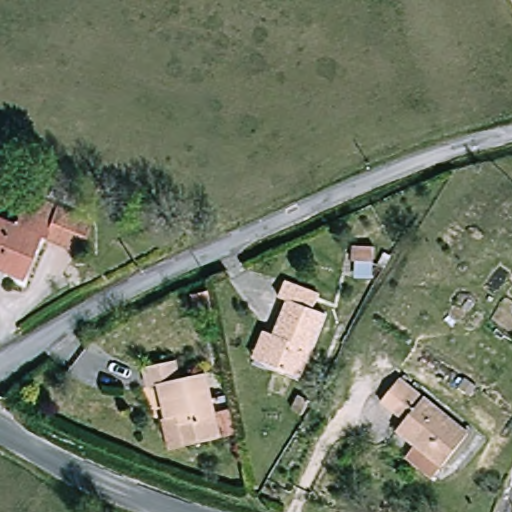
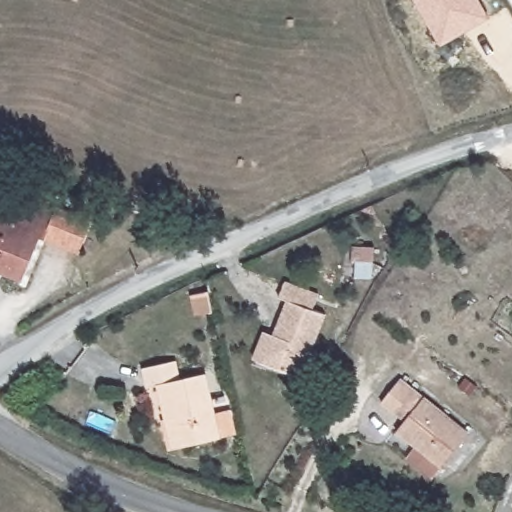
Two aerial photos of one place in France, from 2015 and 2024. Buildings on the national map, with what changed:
new [(481,6),(483,11),(485,10),(490,18),(440,46),(415,0),(481,0),(483,5),(481,6)]
unchanged [(76,263),(37,243),(17,279),(0,270),(0,218),(16,226),(31,197),(94,231),(76,263)]
unchanged [(376,252),(372,268),(355,264),(358,248),(376,252)]
unchanged [(275,336),(286,301),(277,298),(282,282),(317,295),(312,311),(323,315),(303,377),(265,365),(255,361),(265,333),(275,336)]
unchanged [(195,320),(191,296),(208,292),(212,316),(195,320)]
unchanged [(176,417),(170,383),(151,386),(148,370),(181,364),(184,380),(208,376),(220,439),(195,444),(182,447),(176,417)]
unchanged [(408,456),(417,445),(401,431),(407,423),(395,412),(385,404),(406,379),(473,434),(445,469),(436,480),(408,456)]

